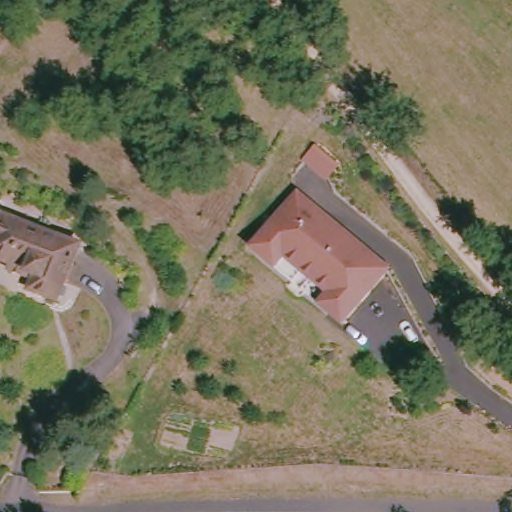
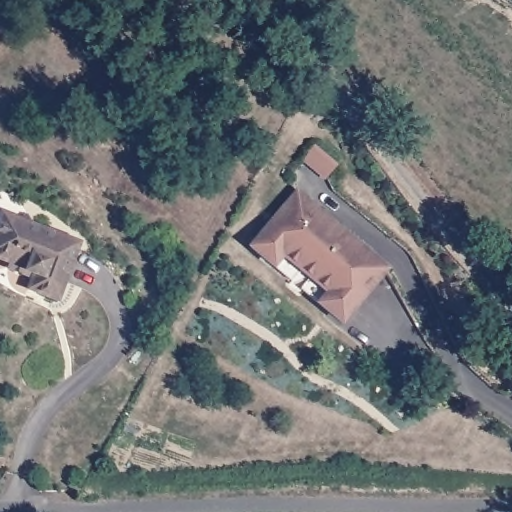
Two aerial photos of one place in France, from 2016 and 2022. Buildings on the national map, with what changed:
unchanged [(339,320),(248,245),(294,191),(319,212),(331,222),(384,265),(339,320)]
unchanged [(24,280),(4,272),(6,266),(0,263),(0,217),(75,247),(53,305),(31,296),(23,292),(29,277),(24,280)]

